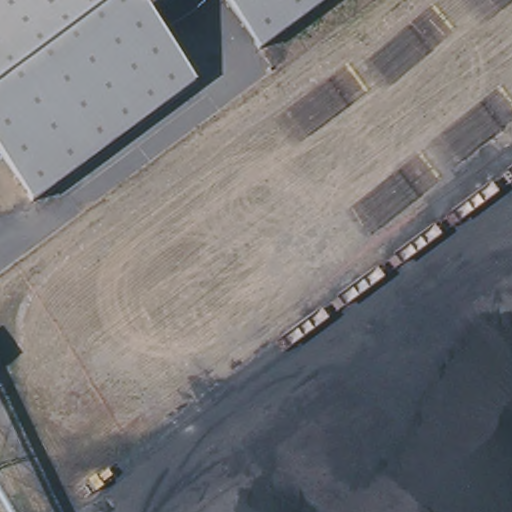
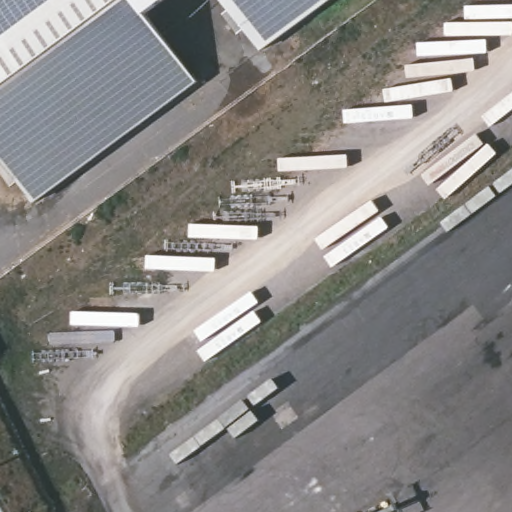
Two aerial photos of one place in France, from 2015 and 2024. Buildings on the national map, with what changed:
unchanged [(196,76),(32,198),(0,153),(0,0),(140,0),(148,11),(196,76)]
unchanged [(140,0),(163,0),(148,11),(140,0)]
unchanged [(226,0),(320,0),(260,45),(226,0)]

